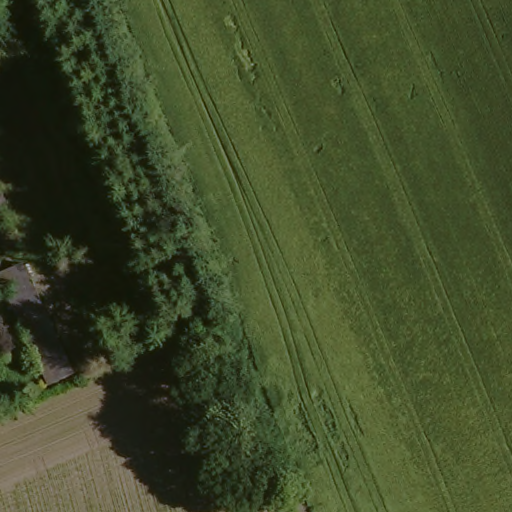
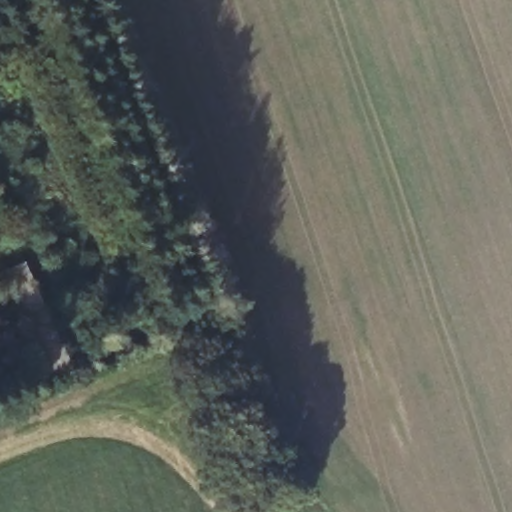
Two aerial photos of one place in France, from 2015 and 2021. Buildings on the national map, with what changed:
unchanged [(43,389),(0,295),(0,275),(21,266),(73,374),(43,389)]

